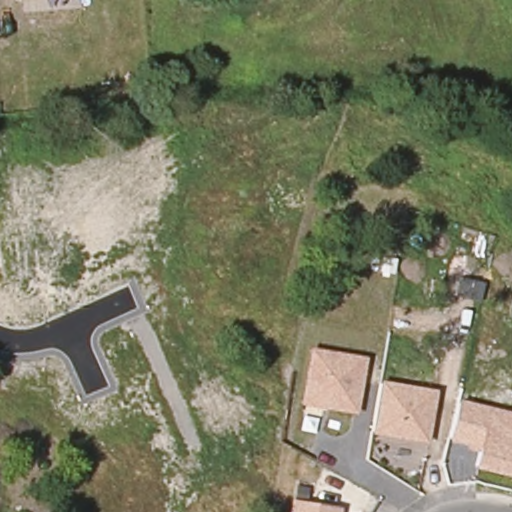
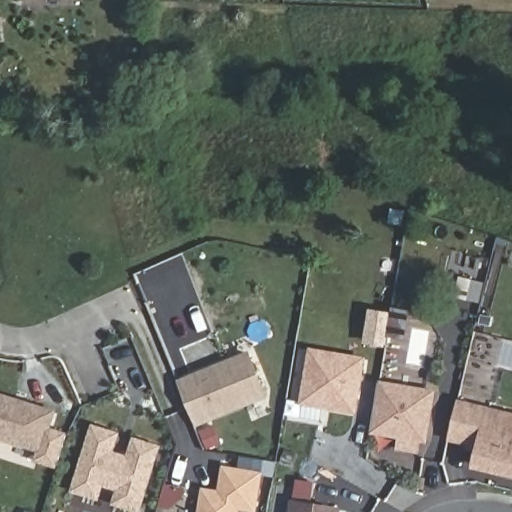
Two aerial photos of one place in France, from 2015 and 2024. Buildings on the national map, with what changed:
new [(392,315),(393,308),(408,310),(404,335),(389,333),(387,344),(367,342),(372,312),(392,315)]
unchanged [(299,405),(309,348),(367,357),(357,413),(299,405)]
new [(197,427),(177,381),(250,351),(269,398),(197,427)]
unchanged [(426,444),(370,434),(379,380),(437,389),(426,444)]
new [(0,441),(0,393),(56,410),(42,454),(0,441)]
unchanged [(472,467),(477,449),(449,439),(457,399),(512,412),(512,477),(472,467)]
new [(71,493),(92,424),(120,433),(114,451),(127,455),(132,437),(160,446),(141,512),(134,512),(111,505),(115,491),(104,487),(99,502),(71,493)]
new [(256,512),(246,512),(240,511),(240,512),(198,512),(202,487),(218,489),(222,466),(263,472),(256,512)]
unchanged [(341,512),(288,512),(290,499),(342,507),(341,512)]

